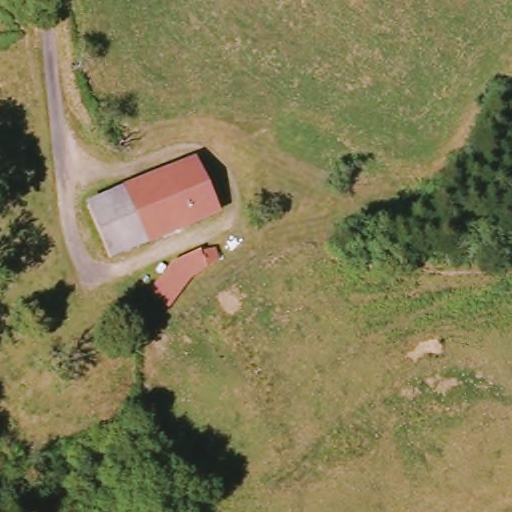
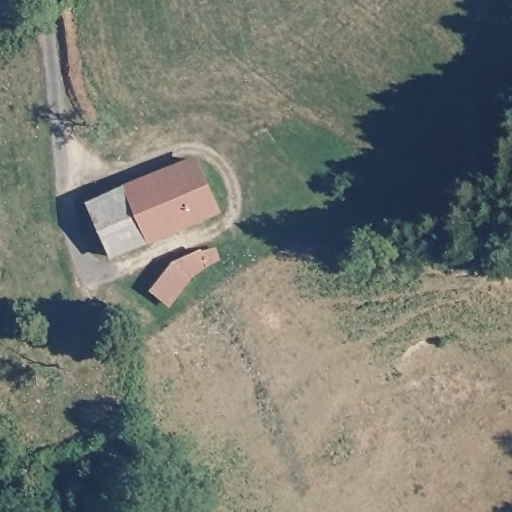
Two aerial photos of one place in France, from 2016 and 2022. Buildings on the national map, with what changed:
unchanged [(73,215),(86,210),(98,205),(93,192),(114,184),(119,196),(142,187),(193,167),(216,218),(105,263),(99,245),(84,250),(73,215)]
unchanged [(174,300),(166,309),(149,292),(171,261),(194,250),(198,255),(213,249),(219,265),(206,269),(188,279),(197,288),(181,306),(174,300)]

